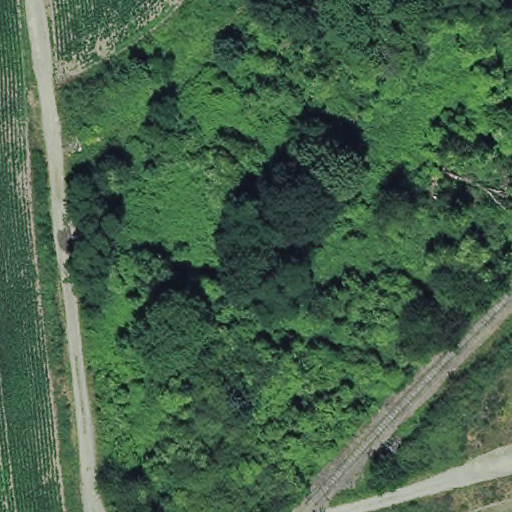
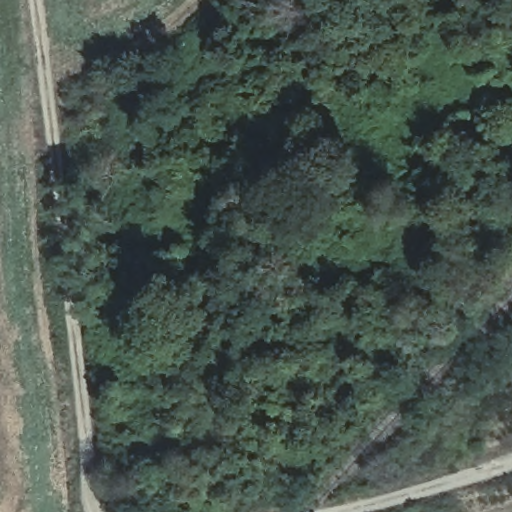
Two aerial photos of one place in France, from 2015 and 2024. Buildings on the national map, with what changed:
[]

